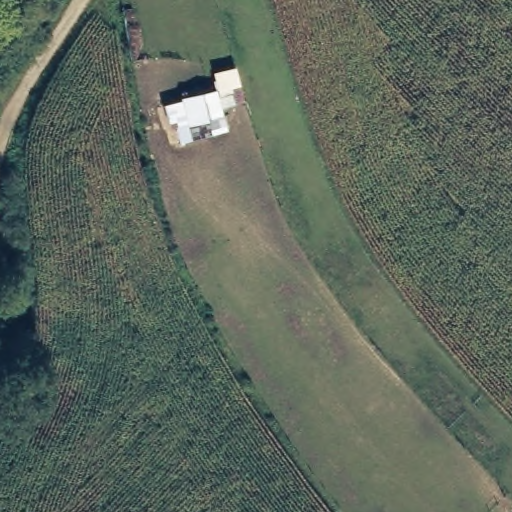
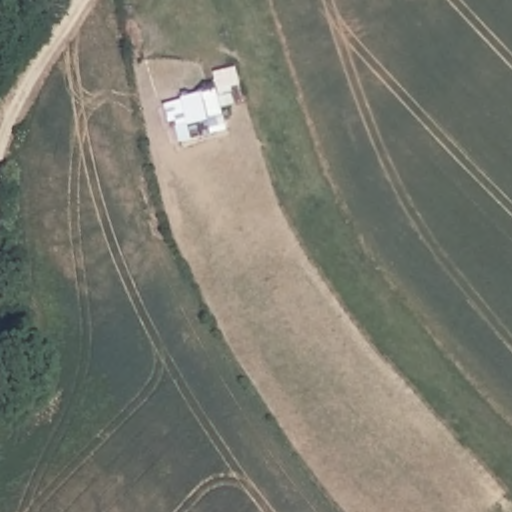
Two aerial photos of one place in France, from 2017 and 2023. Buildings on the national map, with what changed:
unchanged [(225,86),(230,120),(188,128),(183,96),(225,86)]

